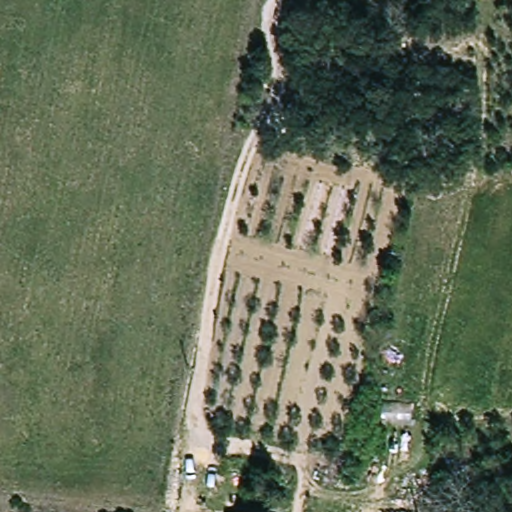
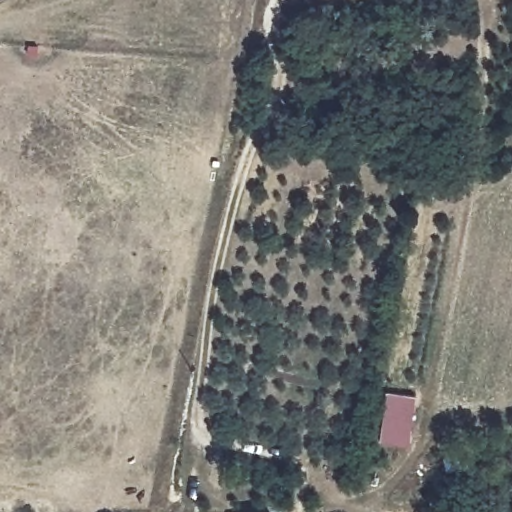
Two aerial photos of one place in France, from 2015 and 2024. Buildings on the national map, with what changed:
new [(387,392),(413,395),(406,445),(380,441),(387,392)]
demolished [(231,512),(221,512),(221,511),(231,512)]

